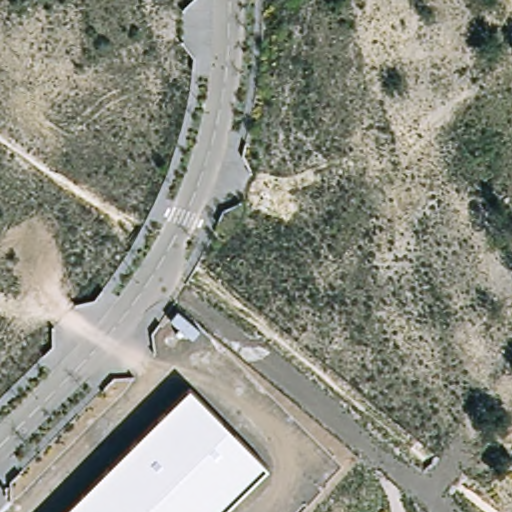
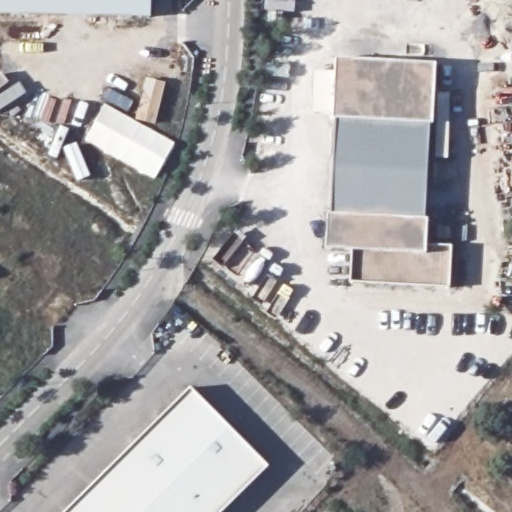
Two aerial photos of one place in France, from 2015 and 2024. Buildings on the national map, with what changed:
new [(0,15),(0,0),(151,0),(150,17),(0,15)]
new [(452,245),(449,287),(350,282),(353,250),(325,248),(327,214),(330,214),(335,119),(332,119),(332,112),(312,112),(313,72),(335,72),(335,59),(435,63),(432,122),(430,122),(424,220),(427,220),(425,245),(452,245)]
new [(85,141),(107,105),(174,144),(155,179),(85,141)]
unchanged [(268,465),(221,512),(64,512),(189,387),(268,465)]

